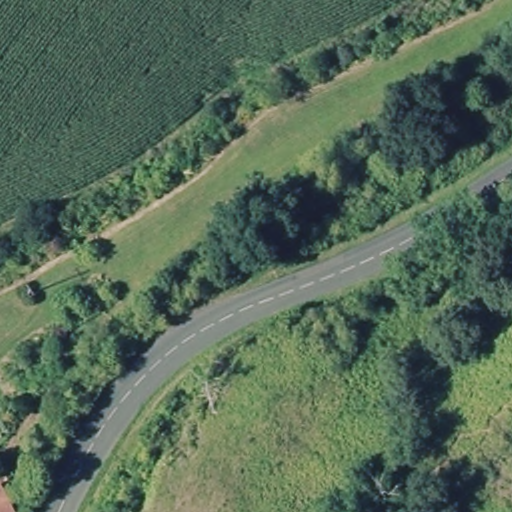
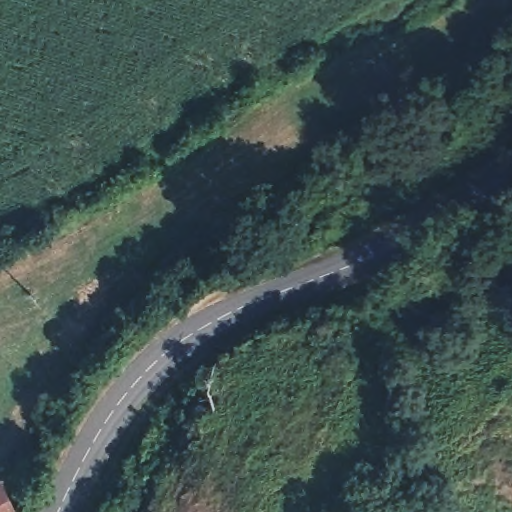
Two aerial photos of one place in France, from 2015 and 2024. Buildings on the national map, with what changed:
unchanged [(3,484),(17,511),(14,512),(0,512),(0,485),(3,484)]

